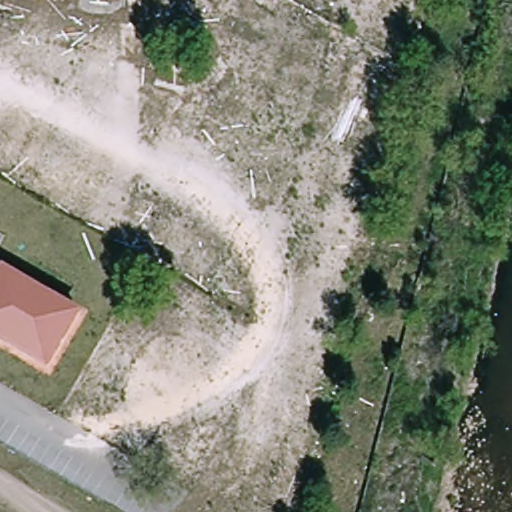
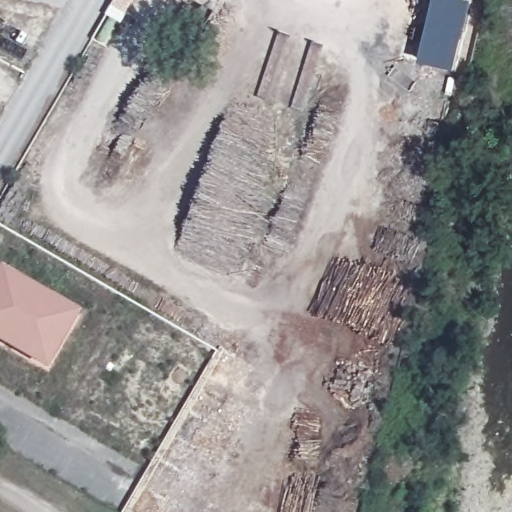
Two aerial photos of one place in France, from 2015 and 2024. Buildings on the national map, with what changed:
new [(437,0),(459,0),(473,3),(457,73),(423,65),(437,0)]
unchanged [(11,297),(0,291),(0,272),(1,270),(20,282),(11,297)]
unchanged [(11,297),(20,282),(73,314),(42,367),(0,343),(0,291),(11,297)]

